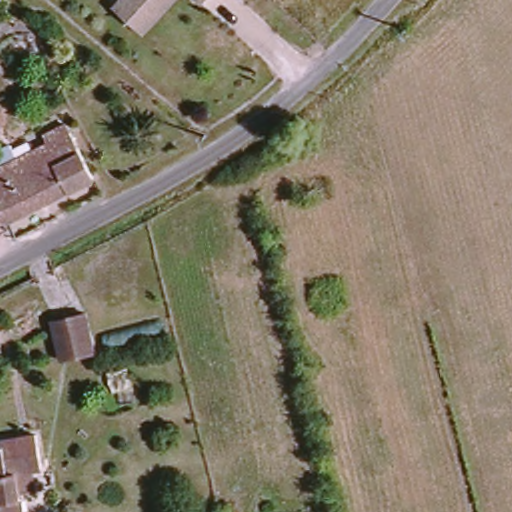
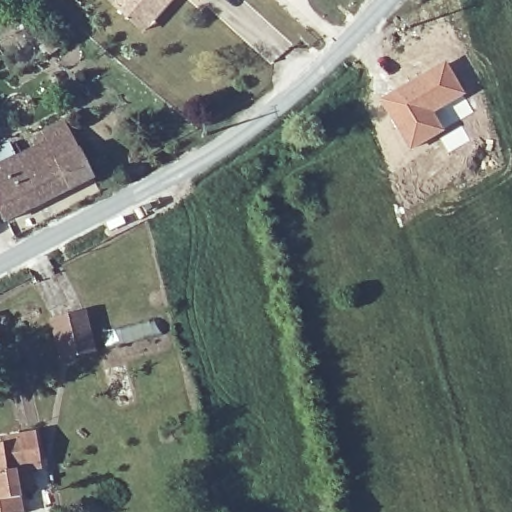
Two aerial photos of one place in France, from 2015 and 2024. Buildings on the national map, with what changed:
unchanged [(134,22),(118,7),(125,0),(178,0),(165,14),(146,34),(134,22)]
unchanged [(205,5),(200,0),(209,0),(205,5)]
new [(446,61),(465,95),(435,114),(445,130),(410,150),(380,100),(446,61)]
unchanged [(6,226),(0,214),(0,162),(44,140),(41,133),(62,122),(91,182),(6,226)]
unchanged [(81,313),(92,353),(57,362),(47,323),(81,313)]
unchanged [(0,335),(6,351),(0,354),(0,335)]
unchanged [(34,474),(7,475),(8,512),(0,512),(0,440),(32,439),(34,474)]

